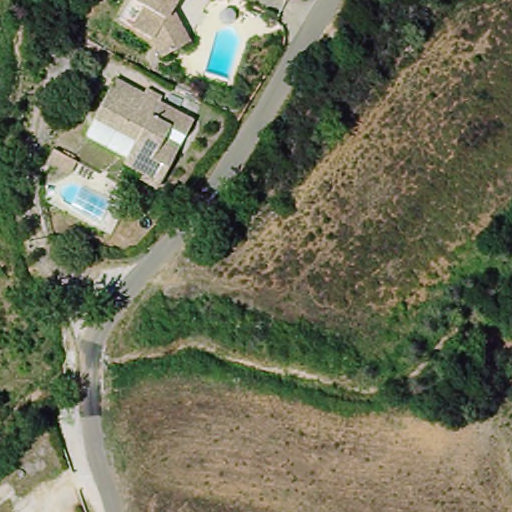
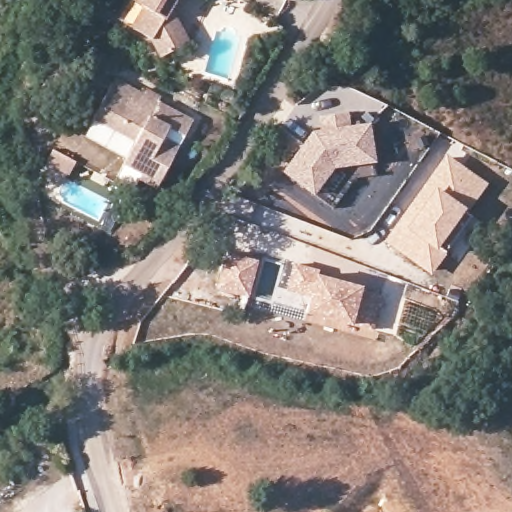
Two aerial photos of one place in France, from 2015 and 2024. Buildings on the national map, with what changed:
unchanged [(183,42),(162,52),(152,38),(135,26),(145,5),(141,0),(179,0),(169,15),(183,42)]
unchanged [(61,69),(43,58),(52,46),(69,59),(61,69)]
unchanged [(155,189),(137,179),(139,168),(127,158),(138,140),(102,111),(117,91),(127,77),(149,93),(196,126),(155,189)]
new [(315,132),(322,131),(320,116),(348,112),(350,127),(369,125),(374,162),(333,167),(313,194),(284,172),(315,132)]
new [(402,216),(409,221),(441,178),(434,173),(448,154),(487,182),(467,208),(472,212),(446,249),(444,248),(431,266),(388,235),(402,216)]
new [(226,250),(256,258),(246,293),(216,285),(226,250)]
new [(294,260),(318,267),(317,271),(360,283),(360,287),(380,292),(371,327),(305,308),(310,292),(287,286),(294,260)]

